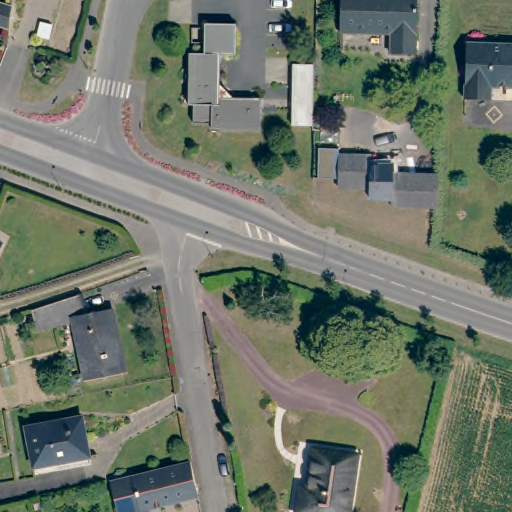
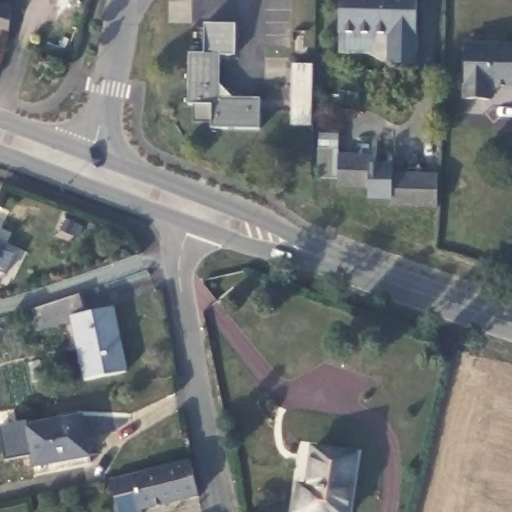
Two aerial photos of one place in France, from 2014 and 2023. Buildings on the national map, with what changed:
unchanged [(411,35),(410,55),(388,55),(389,34),(339,33),(340,0),(415,0),(414,35),(411,35)]
unchanged [(209,124),(192,124),(193,106),(188,106),(188,55),(203,55),(203,25),(235,25),(234,56),(219,56),(218,92),(223,92),(223,99),(259,100),(258,130),(209,130),(209,124)]
unchanged [(512,86),(493,85),(493,99),(469,99),(469,44),(512,45),(512,86)]
unchanged [(311,129),(292,127),(293,66),(312,67),(311,129)]
unchanged [(372,159),(371,167),(393,168),(393,175),(437,176),(437,208),(391,207),(391,200),(368,200),(368,190),(338,189),(338,157),(372,159)]
unchanged [(7,240),(0,253),(0,237),(7,240)]
unchanged [(78,290),(85,310),(111,305),(124,367),(84,377),(72,320),(36,327),(32,306),(78,290)]
unchanged [(25,428),(81,417),(88,457),(32,467),(25,428)]
unchanged [(299,489),(306,490),(312,451),(354,457),(346,512),(295,512),(299,489)]
unchanged [(110,478),(189,458),(197,492),(139,507),(140,512),(118,512),(116,503),(110,478)]

